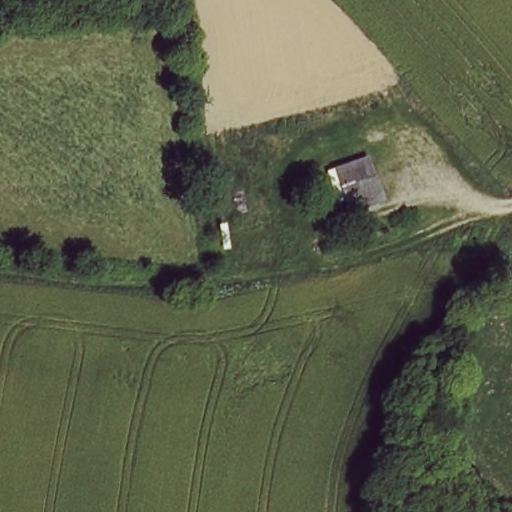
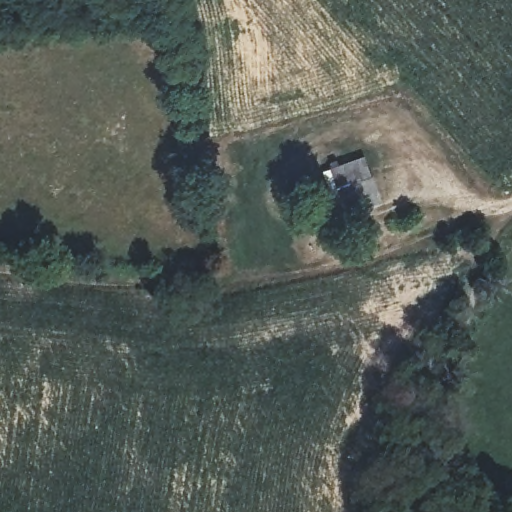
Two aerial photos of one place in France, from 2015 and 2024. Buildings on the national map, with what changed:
unchanged [(365,158),(380,203),(344,215),(330,171),(365,158)]

